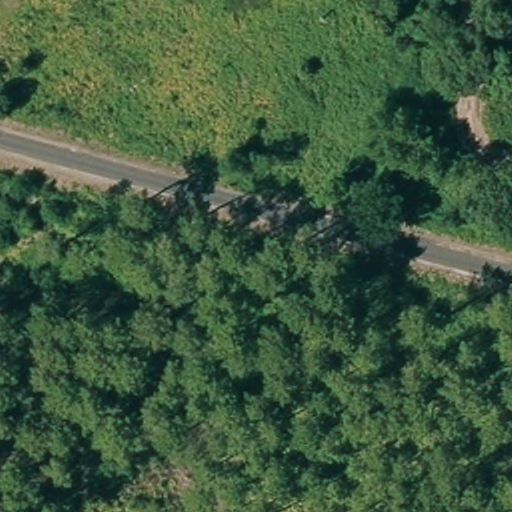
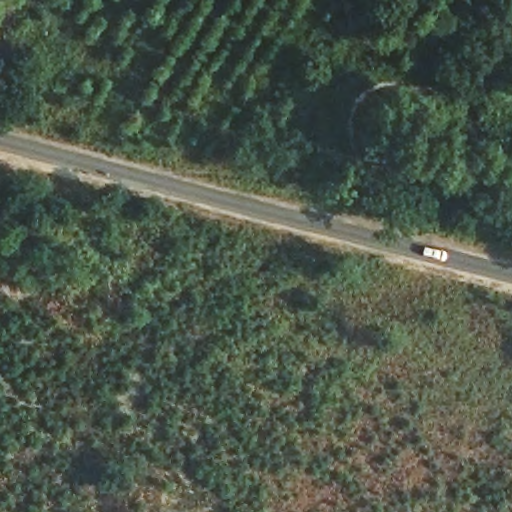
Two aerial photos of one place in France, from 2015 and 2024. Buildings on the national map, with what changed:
[]

